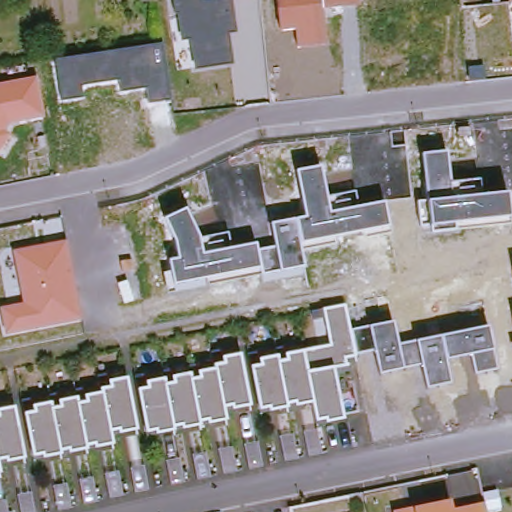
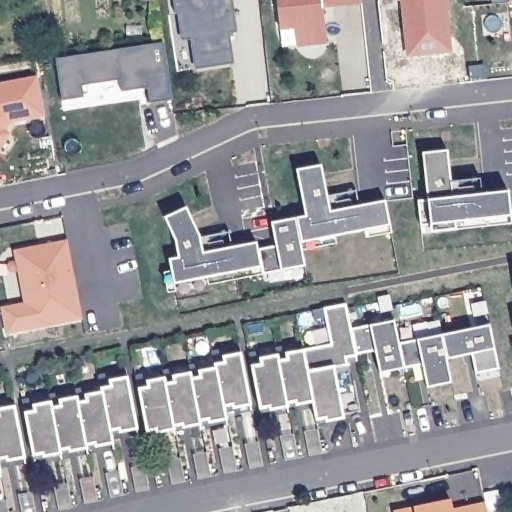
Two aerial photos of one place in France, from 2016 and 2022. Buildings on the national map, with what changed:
unchanged [(229,35),(233,65),(195,70),(189,39),(180,40),(174,0),(232,0),(236,34),(229,35)]
unchanged [(322,8),(326,44),(296,46),(294,27),(279,29),(276,0),(359,0),(359,5),(322,8)]
new [(408,56),(402,0),(445,0),(450,52),(408,56)]
unchanged [(508,0),(512,0),(512,1),(508,2),(508,0)]
unchanged [(162,44),(170,99),(147,101),(145,87),(120,91),(117,80),(81,85),(83,97),(60,101),(54,59),(162,44)]
unchanged [(43,117),(6,123),(2,131),(8,133),(0,146),(0,83),(37,76),(43,117)]
unchanged [(446,150),(450,181),(480,178),(481,194),(507,192),(510,222),(455,229),(455,231),(431,233),(430,224),(420,226),(417,199),(426,197),(421,154),(446,150)]
unchanged [(320,165),(326,196),(356,190),(360,205),(383,200),(390,231),(362,235),(360,231),(333,236),(335,243),(301,250),(295,217),(305,215),(296,171),(320,165)]
unchanged [(185,207),(200,237),(228,231),(232,247),(256,242),(257,250),(275,246),(270,222),(295,217),(301,250),(303,267),(261,275),(260,273),(166,291),(161,272),(170,271),(167,261),(178,258),(175,243),(164,219),(185,207)]
unchanged [(66,241),(81,320),(6,333),(0,307),(23,302),(13,251),(66,241)]
unchanged [(355,356),(346,357),(347,363),(333,367),(343,417),(324,421),(323,418),(315,420),(311,401),(294,405),(293,402),(286,403),(287,405),(267,409),(266,406),(259,407),(250,364),(248,351),(257,349),(259,357),(275,353),(273,345),(283,343),(285,352),(328,343),(321,307),(345,302),(355,356)]
unchanged [(392,321),(398,345),(486,326),(496,368),(476,373),(472,353),(446,359),(451,381),(426,387),(422,363),(379,373),(374,349),(355,353),(352,337),(350,331),(392,321)]
unchanged [(510,341),(512,340),(512,349),(510,341)]
unchanged [(228,407),(227,405),(223,406),(225,418),(205,422),(205,420),(201,421),(201,423),(180,427),(180,425),(173,427),(173,428),(155,433),(153,429),(145,431),(136,387),(135,372),(143,371),(144,379),(163,377),(161,367),(168,366),(170,373),(190,370),(187,363),(195,362),(197,368),(213,366),(213,363),(210,349),(219,347),(221,356),(240,352),(250,405),(228,407)]
unchanged [(116,432),(115,428),(110,430),(112,442),(93,446),(92,444),(85,446),(86,447),(66,452),(66,448),(60,450),(60,452),(40,456),(40,453),(32,455),(21,397),(30,396),(31,402),(49,399),(47,392),(55,390),(57,397),(75,394),(74,387),(81,385),(82,392),(98,388),(96,372),(106,371),(107,378),(127,375),(137,428),(116,432)]
unchanged [(2,458),(0,458),(0,406),(15,404),(25,458),(3,461),(2,458)]
unchanged [(391,508),(450,497),(451,506),(483,499),(486,512),(392,512),(391,508)]

